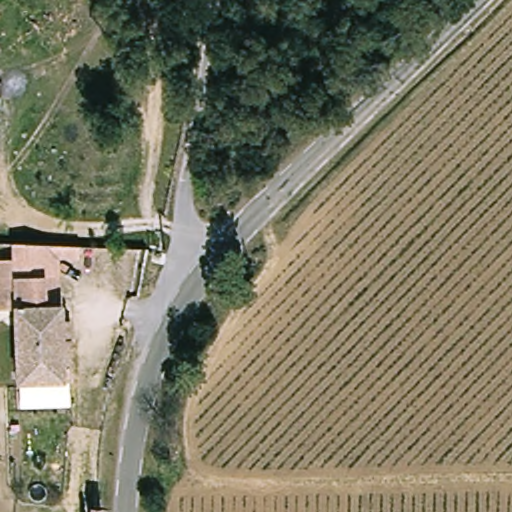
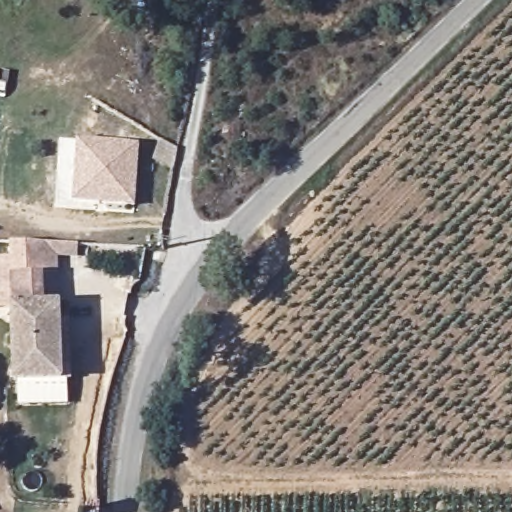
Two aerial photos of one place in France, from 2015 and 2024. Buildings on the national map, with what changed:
new [(139,145),(134,205),(74,201),(78,141),(139,145)]
unchanged [(61,383),(54,383),(9,380),(11,309),(0,309),(0,259),(13,259),(13,245),(41,246),(80,247),(79,259),(58,258),(55,338),(62,338),(61,383)]

